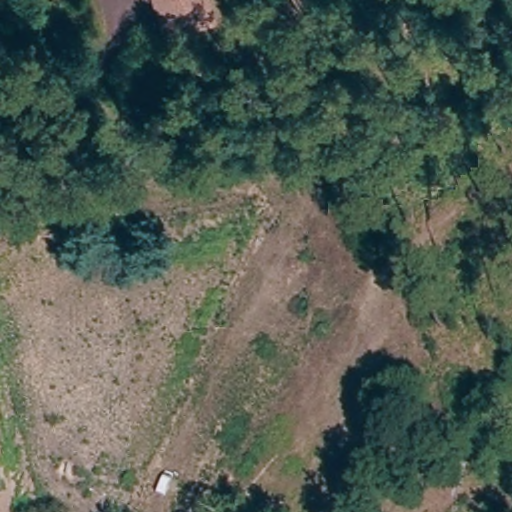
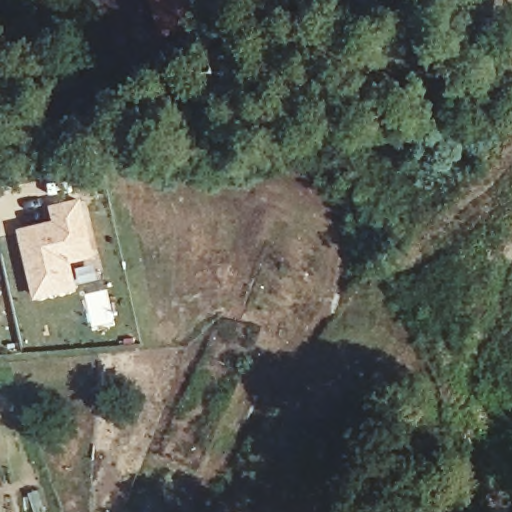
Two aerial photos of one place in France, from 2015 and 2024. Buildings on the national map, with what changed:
unchanged [(165,36),(154,0),(199,0),(206,24),(165,36)]
new [(53,219),(50,204),(83,196),(95,257),(73,263),(78,289),(32,301),(17,228),(53,219)]

